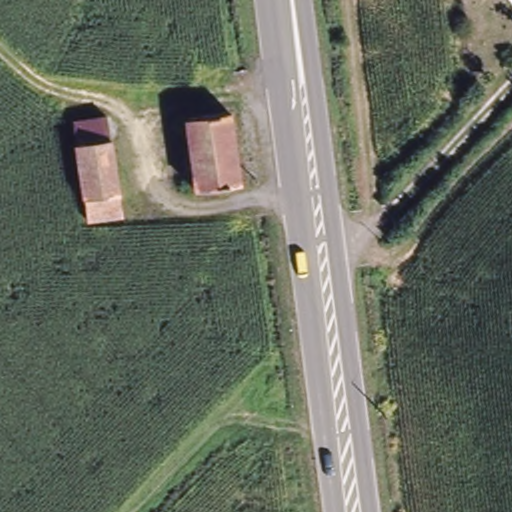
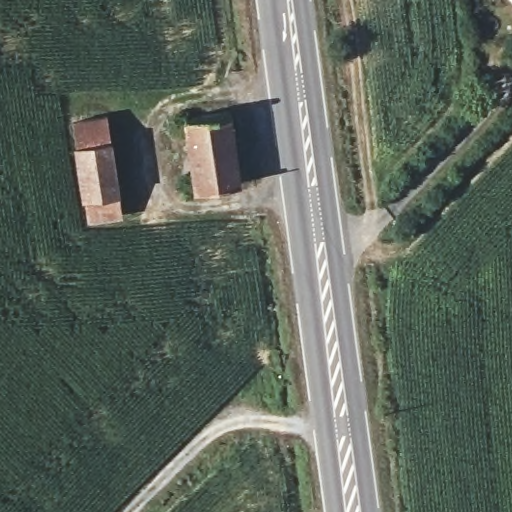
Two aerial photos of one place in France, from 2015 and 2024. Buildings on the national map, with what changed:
unchanged [(182,124),(226,117),(235,187),(192,195),(182,124)]
unchanged [(88,225),(75,126),(109,121),(123,221),(88,225)]

